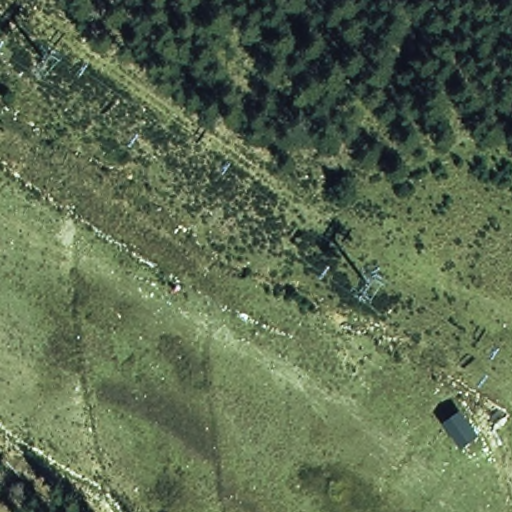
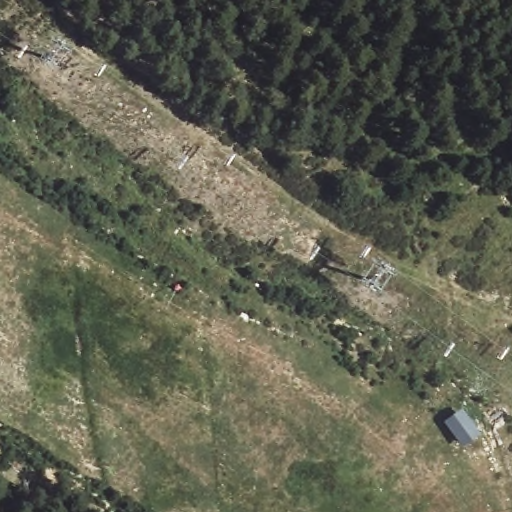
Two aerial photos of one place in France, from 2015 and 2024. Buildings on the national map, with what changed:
unchanged [(442,421),(459,409),(482,436),(462,449),(442,421)]

